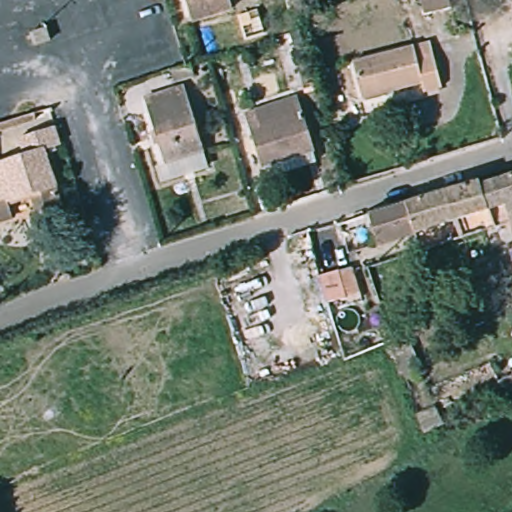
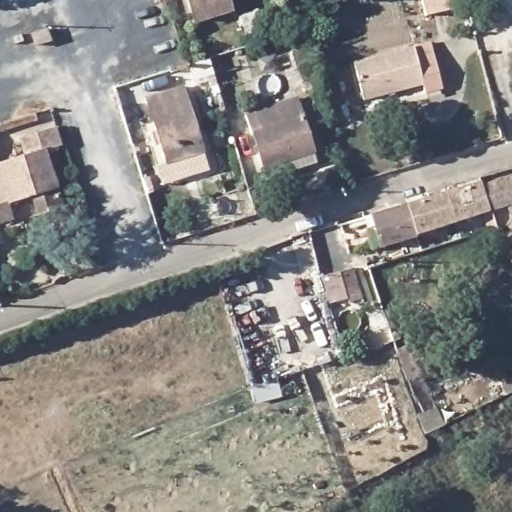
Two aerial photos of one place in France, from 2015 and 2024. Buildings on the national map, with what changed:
unchanged [(230,8),(195,20),(188,0),(227,0),(230,8)]
unchanged [(451,3),(425,9),(423,0),(450,0),(451,3)]
unchanged [(442,87),(424,92),(422,83),(364,99),(354,62),(430,42),(442,87)]
unchanged [(200,86),(178,92),(175,82),(197,76),(200,86)]
unchanged [(207,161),(172,172),(152,108),(187,97),(207,161)]
unchanged [(267,176),(263,166),(252,130),(262,128),(255,110),(296,98),(309,140),(315,161),(267,176)]
unchanged [(0,132),(0,124),(35,113),(37,120),(0,132)]
unchanged [(0,204),(0,163),(44,149),(62,206),(40,212),(33,193),(6,201),(12,219),(0,223),(0,204)]
unchanged [(493,209),(486,186),(512,179),(512,224),(500,228),(499,227),(493,209)]
unchanged [(457,221),(449,193),(485,183),(486,186),(493,209),(457,221)]
unchanged [(410,204),(449,193),(457,221),(420,233),(410,204)]
unchanged [(384,244),(375,215),(410,204),(420,233),(384,244)]
unchanged [(500,273),(480,284),(475,272),(494,262),(500,273)]
unchanged [(358,294),(327,303),(318,276),(350,268),(358,294)]
unchanged [(402,364),(397,348),(410,343),(416,358),(414,360),(419,373),(405,379),(400,365),(402,364)]
unchanged [(502,393),(497,382),(512,375),(512,388),(502,393)]
unchanged [(435,407),(442,424),(423,433),(417,415),(435,407)]

